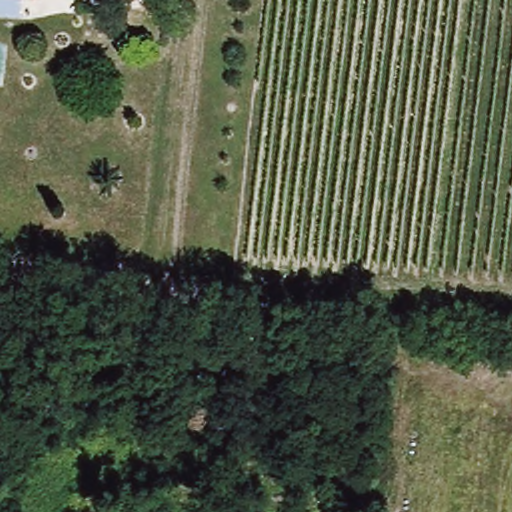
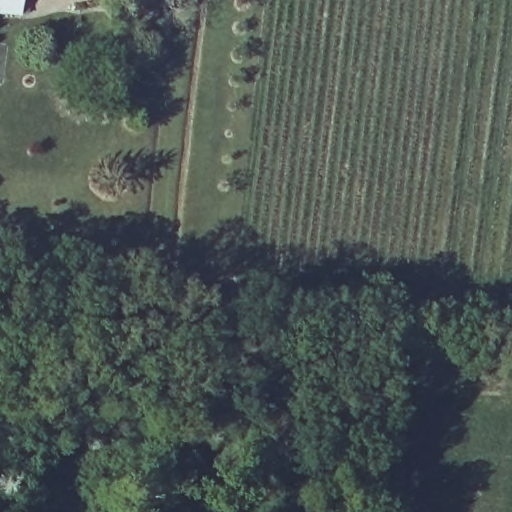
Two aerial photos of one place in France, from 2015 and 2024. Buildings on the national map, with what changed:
unchanged [(17,9),(0,7),(0,0),(17,0),(17,9)]

